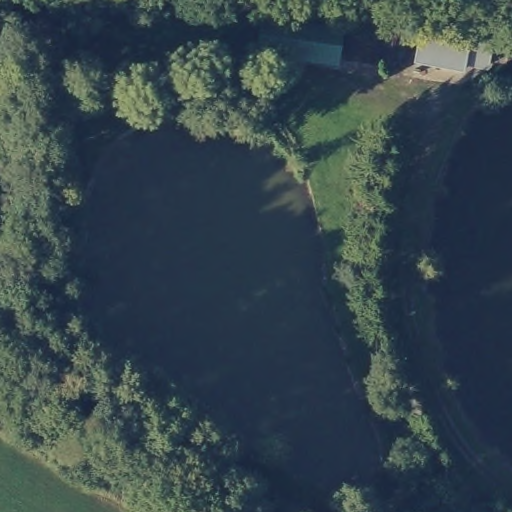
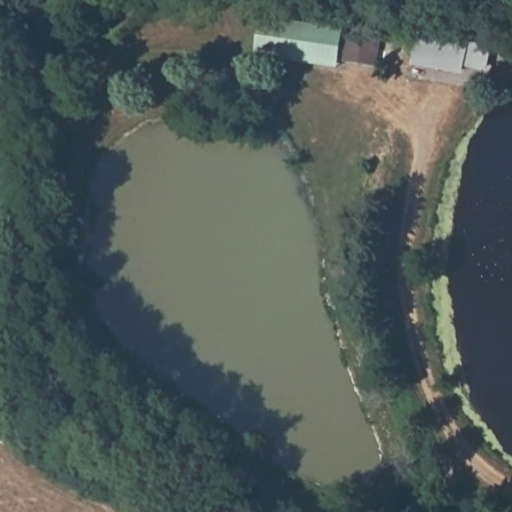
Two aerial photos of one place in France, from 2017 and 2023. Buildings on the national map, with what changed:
unchanged [(380,42),(379,62),(348,61),(350,41),(380,42)]

